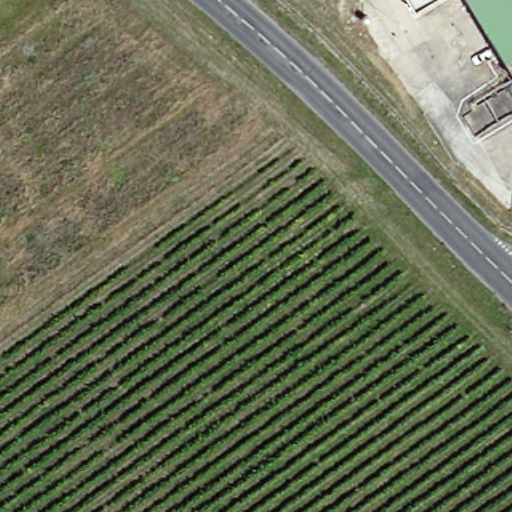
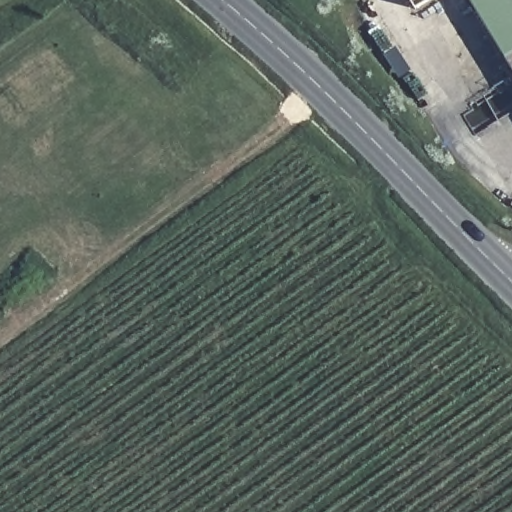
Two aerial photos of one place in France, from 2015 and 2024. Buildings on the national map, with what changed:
unchanged [(401,0),(426,0),(408,11),(401,0)]
unchanged [(464,0),(512,0),(512,78),(464,0)]

